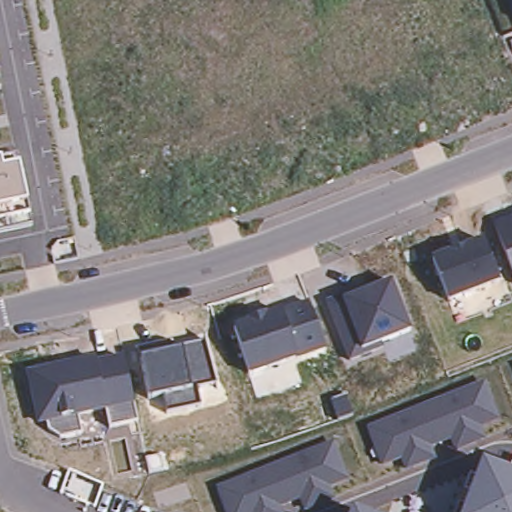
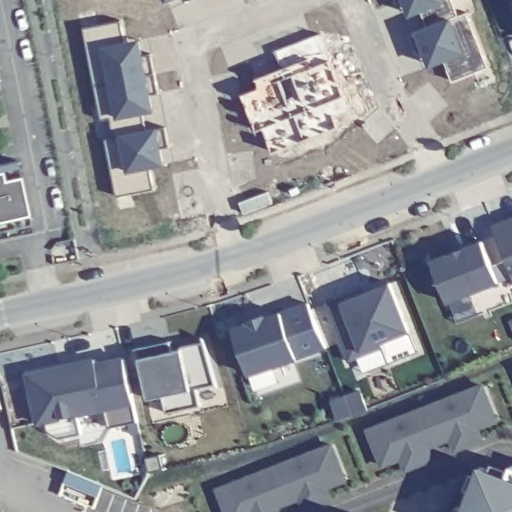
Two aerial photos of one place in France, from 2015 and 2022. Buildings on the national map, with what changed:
new [(162,0),(168,0),(163,1),(162,0)]
new [(464,14),(487,71),(450,81),(443,63),(427,68),(414,34),(426,30),(419,15),(407,20),(398,0),(450,0),(454,18),(464,14)]
new [(121,26),(124,45),(140,43),(151,111),(142,114),(145,131),(156,130),(163,166),(148,168),(152,192),(115,199),(104,137),(111,137),(109,117),(100,119),(80,30),(121,26)]
new [(309,60),(312,68),(328,62),(341,100),(325,106),(336,129),(271,155),(261,130),(254,135),(239,97),(258,91),(253,81),(309,60)]
unchanged [(31,217),(0,224),(0,163),(18,159),(31,217)]
unchanged [(512,216),(512,270),(495,223),(512,216)]
unchanged [(501,284),(449,304),(433,260),(483,239),(501,284)]
unchanged [(361,287),(362,292),(392,282),(411,331),(363,351),(349,360),(325,301),(361,287)]
unchanged [(327,349),(251,376),(235,326),(309,302),(327,349)]
unchanged [(141,357),(138,348),(171,340),(173,349),(182,347),(204,341),(216,383),(196,388),(199,405),(166,411),(163,395),(148,398),(141,357)]
unchanged [(36,423),(28,371),(98,356),(98,360),(124,355),(133,402),(137,420),(109,426),(106,408),(78,413),(81,432),(60,436),(48,429),(48,421),(36,423)]
unchanged [(485,382),(498,421),(479,428),(484,439),(455,451),(452,442),(433,448),(437,459),(407,472),(402,460),(381,469),(366,428),(485,382)]
unchanged [(334,442),(351,483),(329,491),(333,501),(309,512),(303,512),(299,501),(282,508),(283,512),(226,512),(217,487),(334,442)]
unchanged [(482,459),(509,468),(511,460),(512,460),(512,512),(461,512),(482,459)]
unchanged [(350,507),(363,512),(349,512),(350,507)]

